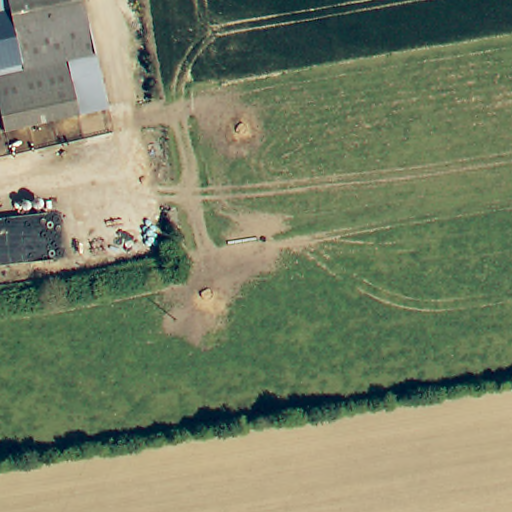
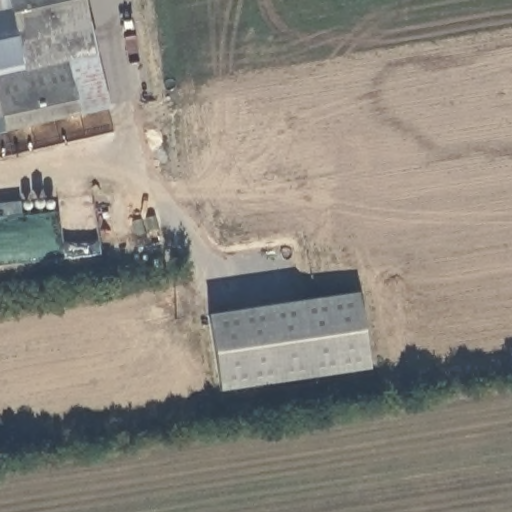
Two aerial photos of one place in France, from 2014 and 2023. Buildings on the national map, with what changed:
unchanged [(82,0),(105,99),(4,123),(2,108),(0,109),(0,0),(82,0)]
new [(22,202),(23,215),(0,218),(0,205),(22,202)]
new [(370,369),(220,392),(207,316),(359,293),(370,369)]

